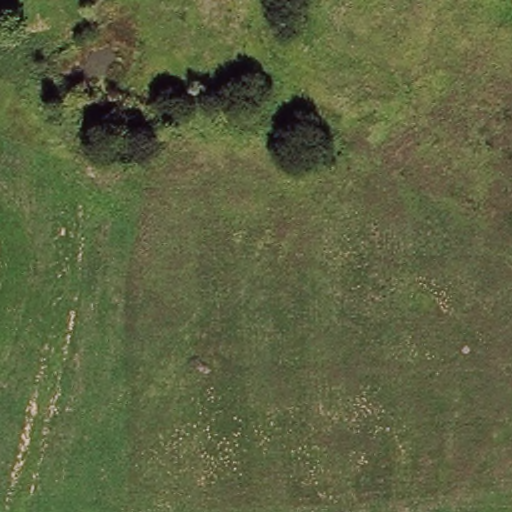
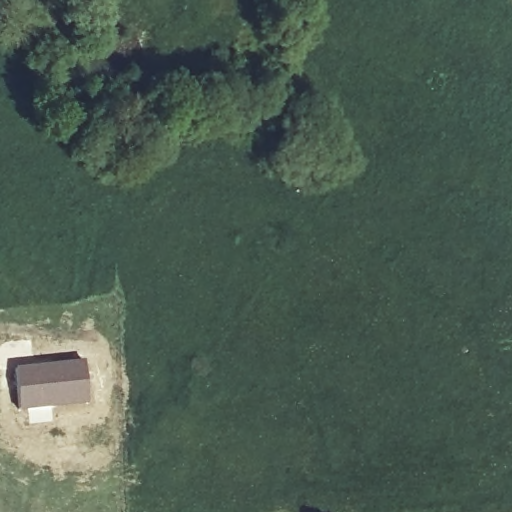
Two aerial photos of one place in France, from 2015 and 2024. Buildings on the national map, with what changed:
new [(84,360),(90,404),(18,411),(14,367),(84,360)]

